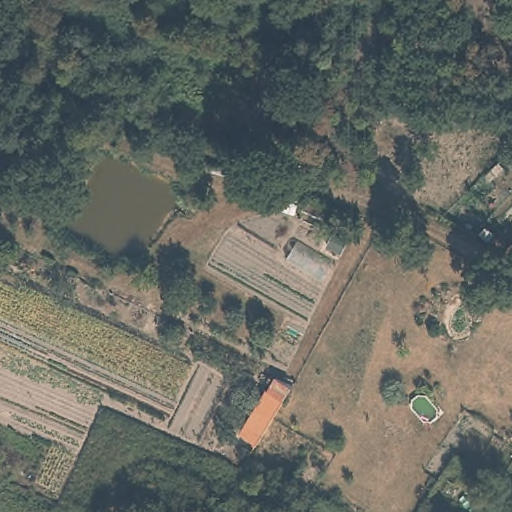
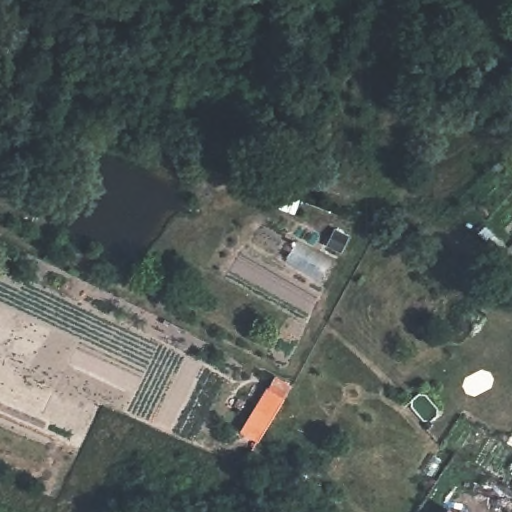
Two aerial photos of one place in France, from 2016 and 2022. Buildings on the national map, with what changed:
unchanged [(298,212),(276,207),(280,192),(302,197),(298,212)]
unchanged [(258,429),(242,418),(255,401),(267,382),(272,376),(287,385),(283,390),(279,397),(271,409),(258,429)]
unchanged [(450,503),(463,512),(444,512),(445,511),(450,503)]

